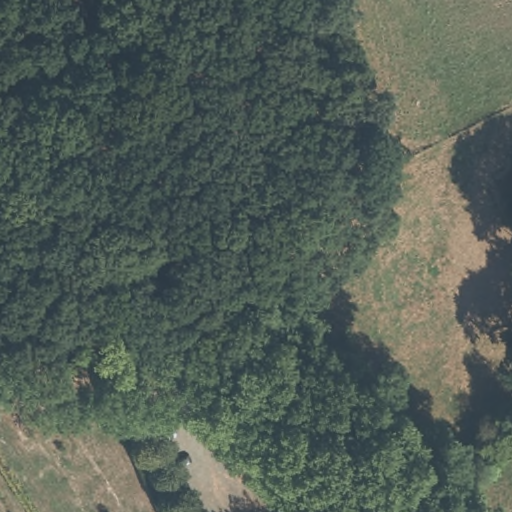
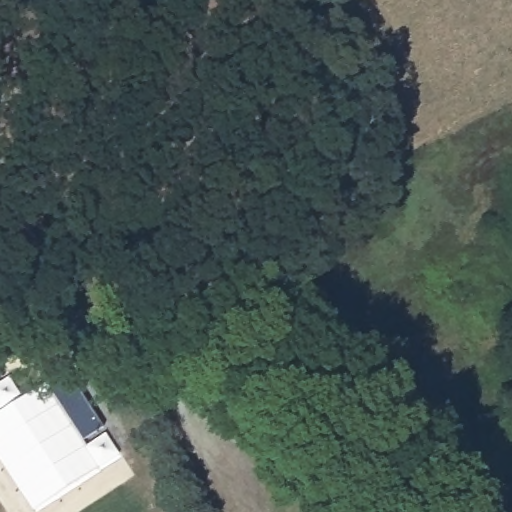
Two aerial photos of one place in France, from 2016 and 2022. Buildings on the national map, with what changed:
new [(1,411),(0,409),(0,382),(9,376),(23,397),(68,368),(104,426),(83,440),(86,446),(104,434),(118,456),(35,509),(0,455),(0,412),(1,411)]

